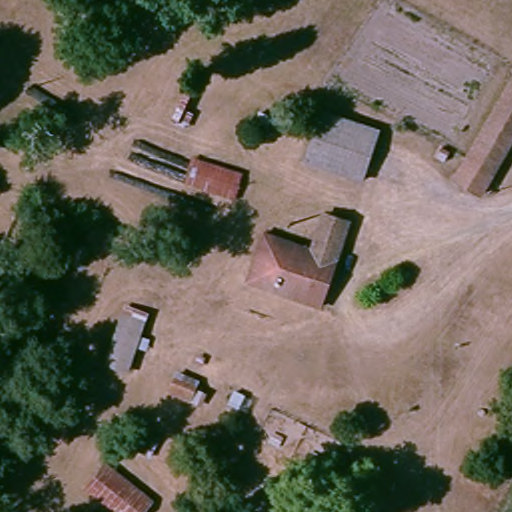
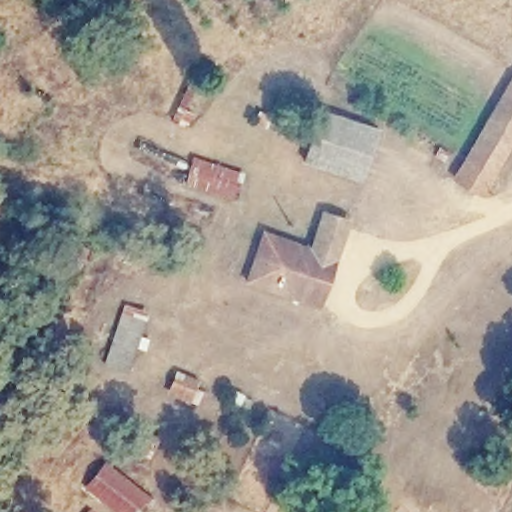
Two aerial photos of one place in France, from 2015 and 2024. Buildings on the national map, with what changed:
unchanged [(512,147),(487,187),(465,174),(512,93),(512,147)]
unchanged [(367,182),(313,161),(324,132),(332,112),(386,131),(378,152),(367,182)]
unchanged [(240,201),(187,185),(195,154),(247,170),(240,201)]
unchanged [(304,294),(246,277),(262,232),(310,249),(324,210),(358,222),(325,319),(301,312),(304,294)]
unchanged [(147,331),(156,335),(152,352),(142,350),(134,372),(107,366),(126,307),(153,312),(147,331)]
unchanged [(162,502),(154,512),(118,512),(87,487),(111,459),(162,502)]
unchanged [(98,512),(87,512),(92,506),(98,512)]

